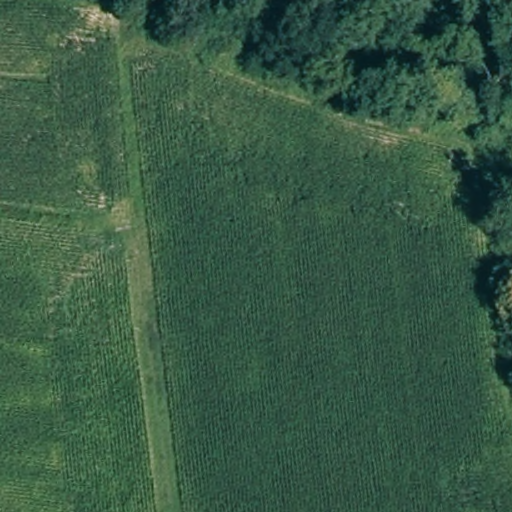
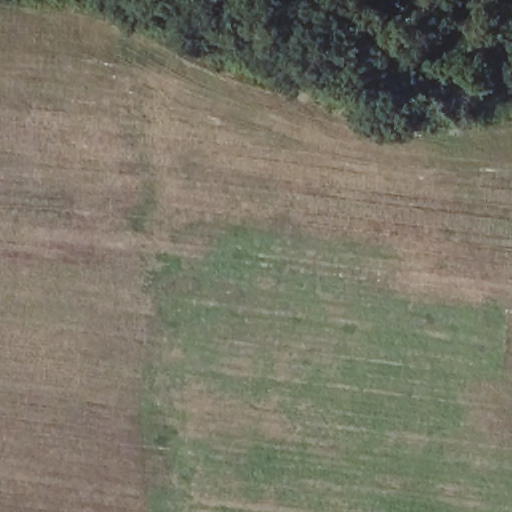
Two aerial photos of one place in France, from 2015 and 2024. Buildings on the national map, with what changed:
[]

